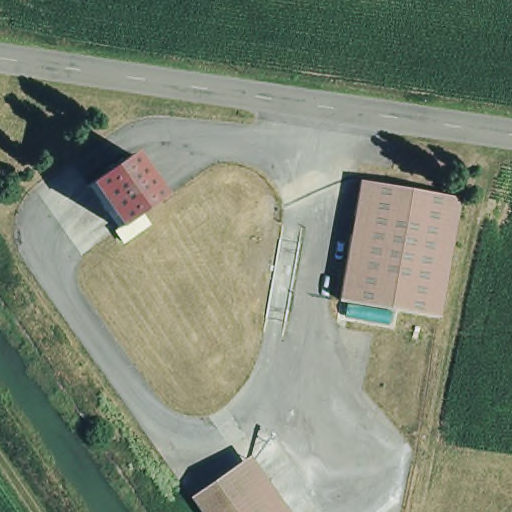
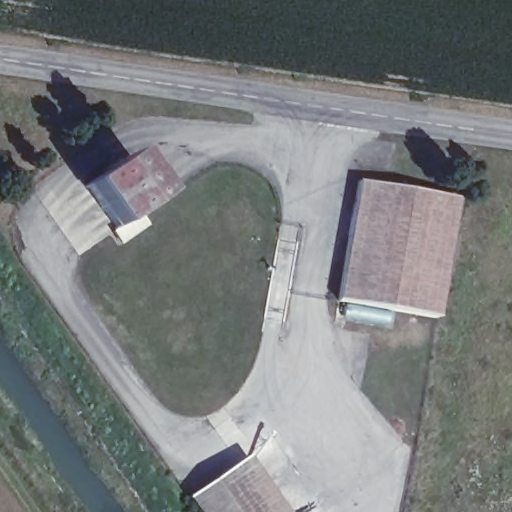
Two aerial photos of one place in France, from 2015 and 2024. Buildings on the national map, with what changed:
unchanged [(103,224),(72,181),(115,149),(146,192),(103,224)]
unchanged [(358,173),(459,190),(438,310),(337,293),(358,173)]
unchanged [(248,455),(289,512),(222,512),(203,486),(248,455)]

